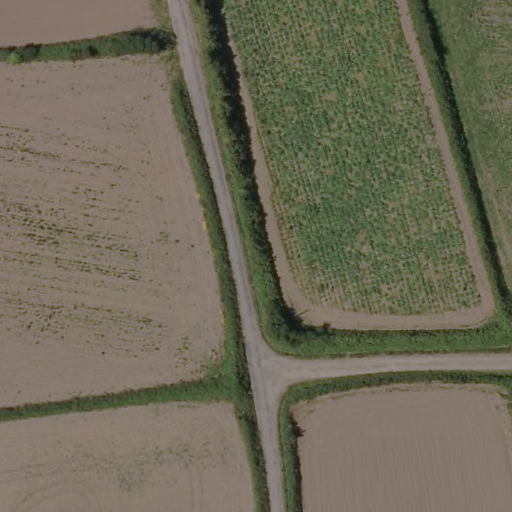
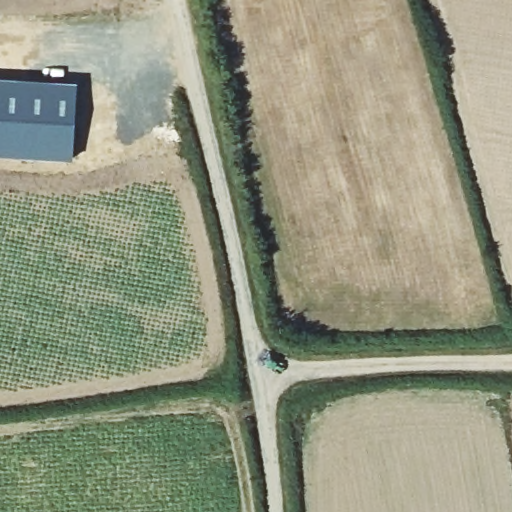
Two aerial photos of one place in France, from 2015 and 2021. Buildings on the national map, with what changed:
new [(0,154),(0,76),(78,82),(74,158),(0,154)]

